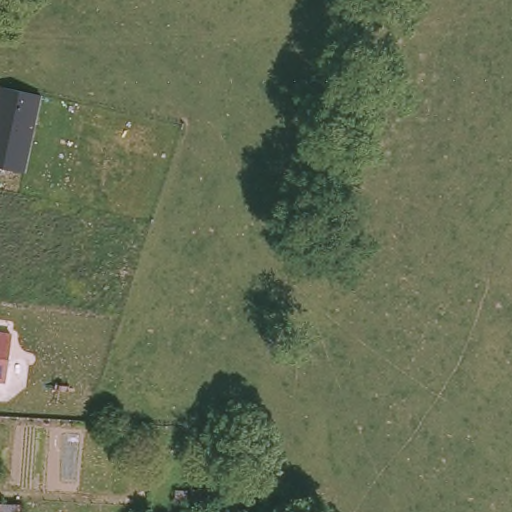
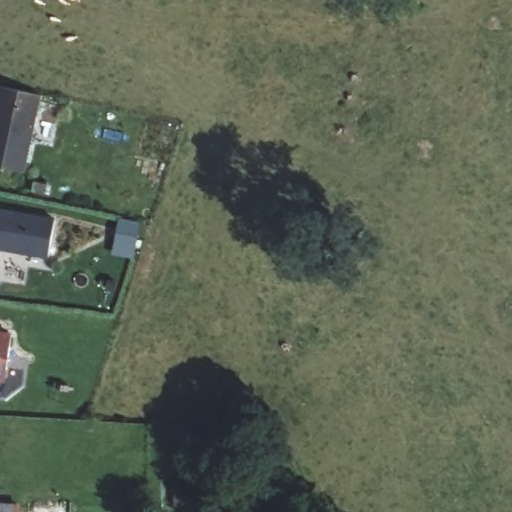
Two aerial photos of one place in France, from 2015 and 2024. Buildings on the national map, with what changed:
unchanged [(0,178),(0,97),(35,103),(17,181),(0,178)]
new [(50,258),(0,250),(0,253),(0,209),(56,218),(50,258)]
new [(0,331),(12,333),(5,380),(0,380),(0,331)]
unchanged [(25,512),(0,512),(0,502),(25,502),(25,512)]

